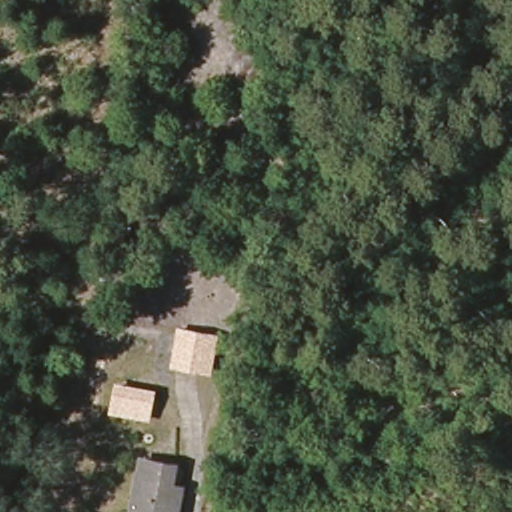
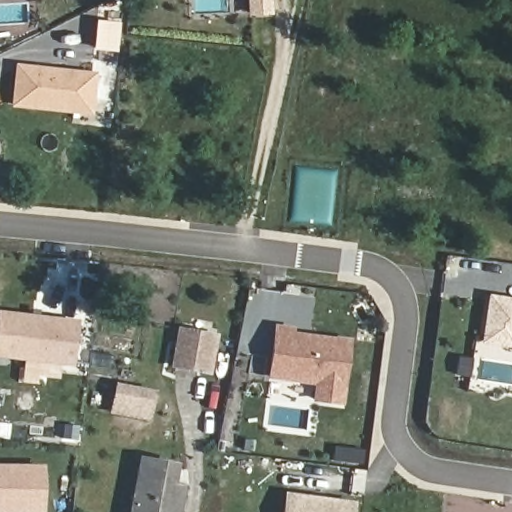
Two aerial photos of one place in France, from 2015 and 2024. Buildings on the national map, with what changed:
new [(247,16),(247,0),(271,0),(272,15),(247,16)]
new [(120,50),(95,49),(95,21),(119,21),(120,50)]
new [(97,73),(93,115),(13,107),(16,103),(10,102),(14,64),(97,73)]
new [(480,343),(488,294),(512,298),(512,348),(480,343)]
new [(67,362),(0,355),(0,314),(72,322),(67,362)]
new [(288,328),(287,333),(298,335),(306,336),(344,340),(336,401),(311,398),(314,380),(266,374),(272,325),(288,328)]
unchanged [(210,376),(173,372),(178,330),(216,334),(210,376)]
unchanged [(156,389),(151,421),(108,415),(114,382),(156,389)]
unchanged [(141,459),(177,464),(174,484),(185,487),(181,512),(134,512),(141,459)]
new [(0,463),(44,464),(44,512),(0,512),(0,463)]
new [(283,494),(349,504),(347,512),(280,512),(283,494)]

